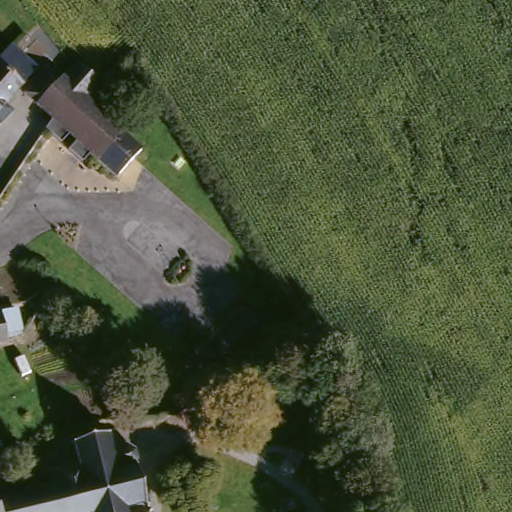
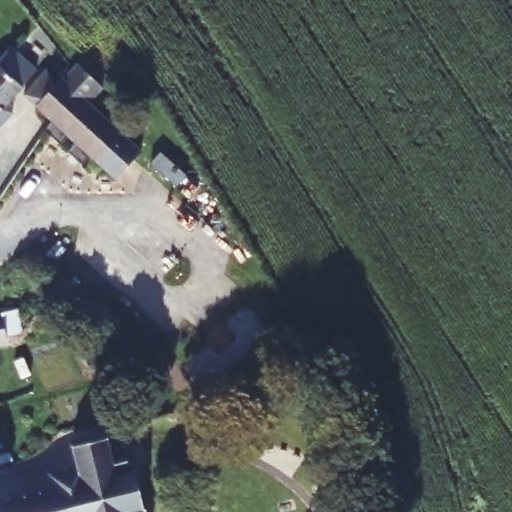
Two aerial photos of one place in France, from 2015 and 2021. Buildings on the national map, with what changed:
unchanged [(28,75),(0,107),(0,63),(9,53),(28,75)]
unchanged [(89,81),(99,90),(103,94),(119,110),(124,115),(117,126),(114,130),(111,134),(133,154),(113,175),(91,154),(79,167),(64,153),(76,140),(69,133),(56,146),(40,130),(51,115),(38,101),(31,96),(23,88),(39,70),(48,79),(49,78),(51,76),(52,75),(60,66),(66,71),(83,89),(89,81)]
unchanged [(0,354),(0,332),(3,354),(0,354)]
unchanged [(143,512),(0,512),(0,508),(6,507),(48,496),(45,483),(75,476),(67,445),(106,435),(111,452),(120,451),(130,455),(134,478),(129,480),(133,495),(136,507),(142,507),(143,512)]

